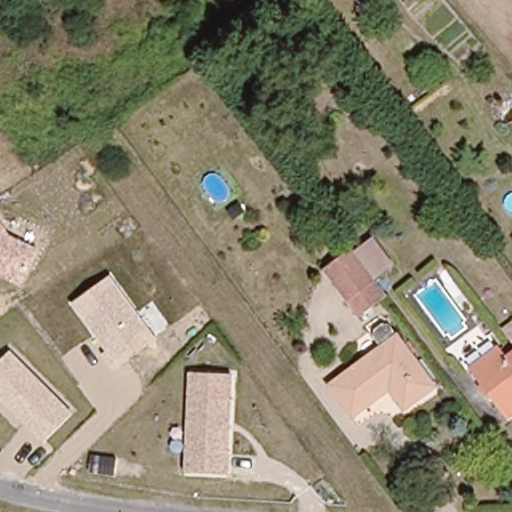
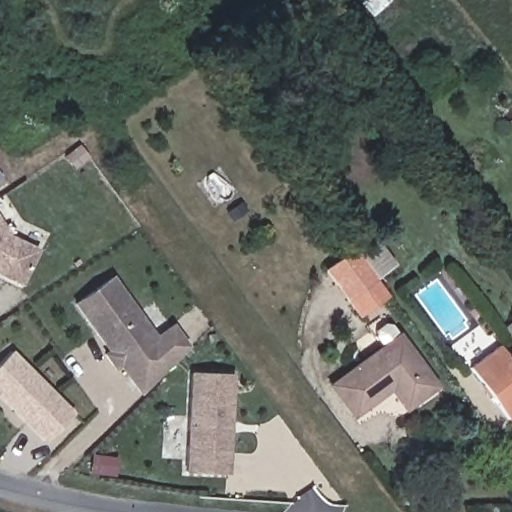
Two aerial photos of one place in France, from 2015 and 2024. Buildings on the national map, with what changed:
unchanged [(11,235),(38,249),(21,284),(0,275),(0,219),(11,235)]
unchanged [(374,235),(395,262),(378,277),(385,288),(358,308),(325,264),(353,244),(357,250),(374,235)]
unchanged [(112,275),(156,334),(158,337),(118,367),(115,369),(102,354),(106,350),(72,303),(112,275)]
new [(158,337),(156,334),(172,322),(189,345),(139,395),(118,367),(158,337)]
unchanged [(384,387),(347,413),(326,384),(393,336),(429,386),(399,407),(384,387)]
unchanged [(512,348),(512,409),(501,416),(465,367),(494,346),(501,355),(512,348)]
unchanged [(13,350),(73,412),(44,444),(0,399),(0,363),(13,350)]
unchanged [(229,473),(184,471),(190,372),(233,373),(229,473)]

